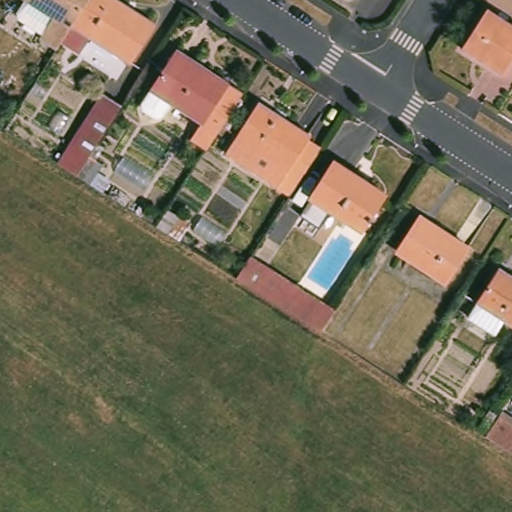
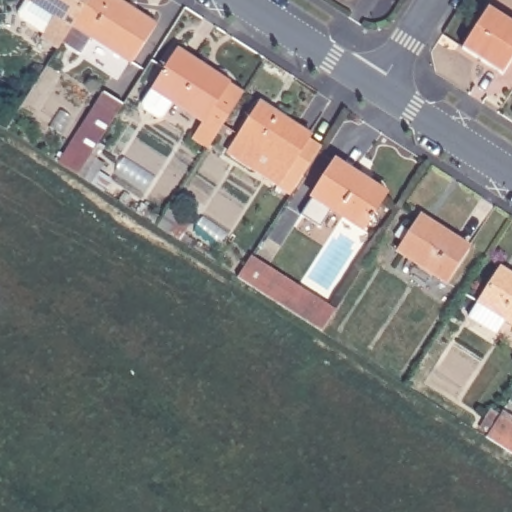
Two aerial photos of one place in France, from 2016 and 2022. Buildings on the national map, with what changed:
unchanged [(65,42),(59,52),(42,40),(44,37),(21,21),(20,15),(29,3),(25,0),(93,0),(65,42)]
unchanged [(93,0),(119,0),(158,25),(133,64),(93,38),(83,52),(65,42),(93,0)]
unchanged [(502,76),(462,50),(487,10),(509,25),(512,26),(512,59),(502,76)]
unchanged [(246,90),(229,117),(209,147),(194,136),(205,120),(175,100),(166,114),(161,115),(148,105),(147,101),(156,87),(180,48),(246,90)]
unchanged [(90,185),(78,177),(58,164),(75,137),(104,95),(124,107),(107,134),(106,135),(90,159),(101,166),(90,185)]
unchanged [(228,155),(263,103),(312,134),(309,139),(323,147),(309,170),(293,195),(277,185),(250,169),(228,155)]
unchanged [(334,160),(384,193),(361,227),(311,196),(334,160)]
unchanged [(423,215),(472,247),(451,281),(401,250),(423,215)]
unchanged [(145,218),(157,225),(146,241),(135,234),(145,218)]
unchanged [(253,255),(338,309),(324,330),(305,317),(298,313),(240,275),(253,255)]
unchanged [(512,273),(512,320),(509,318),(500,331),(472,313),(503,267),(512,273)]
unchanged [(506,415),(512,420),(512,456),(489,441),(506,415)]

